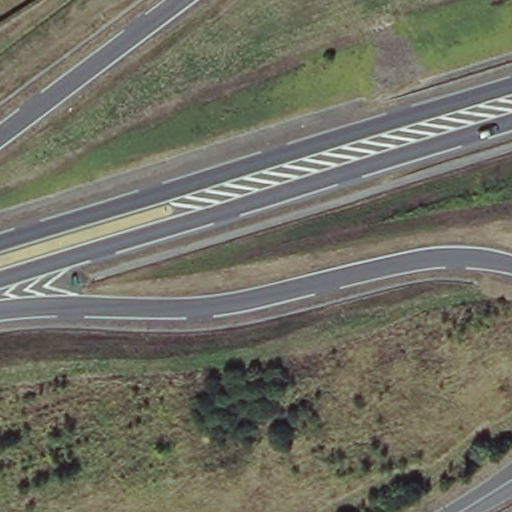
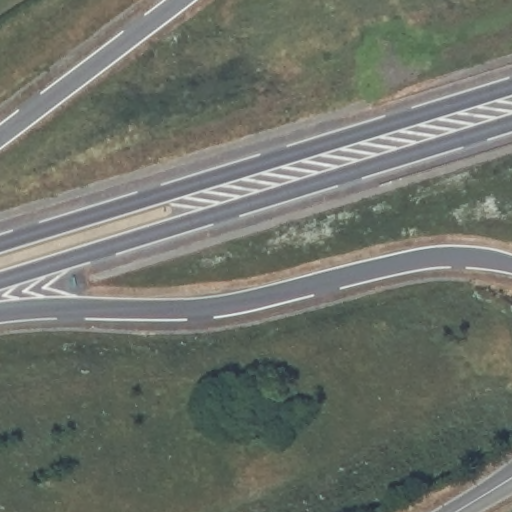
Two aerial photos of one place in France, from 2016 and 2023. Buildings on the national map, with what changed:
[]

